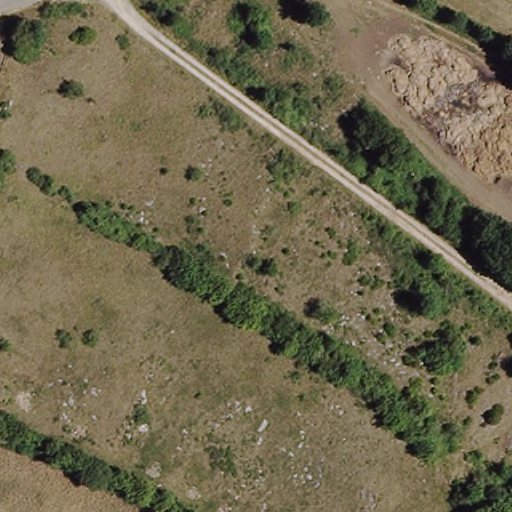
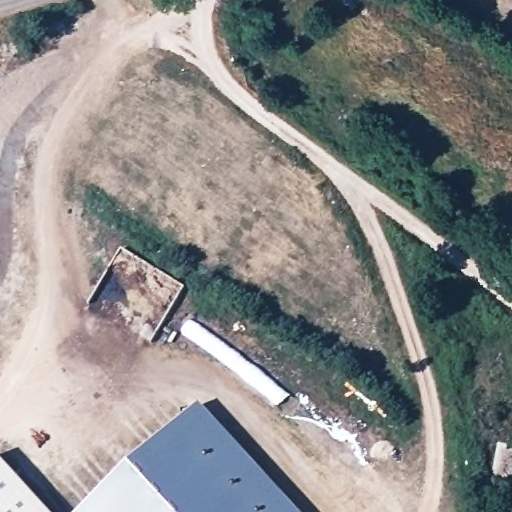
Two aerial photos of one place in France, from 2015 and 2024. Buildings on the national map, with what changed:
new [(201,404),(298,512),(81,512),(201,404)]
new [(0,459),(49,512),(0,512),(0,459)]

